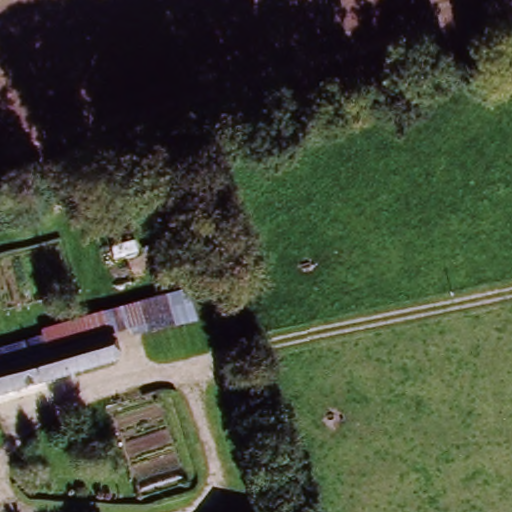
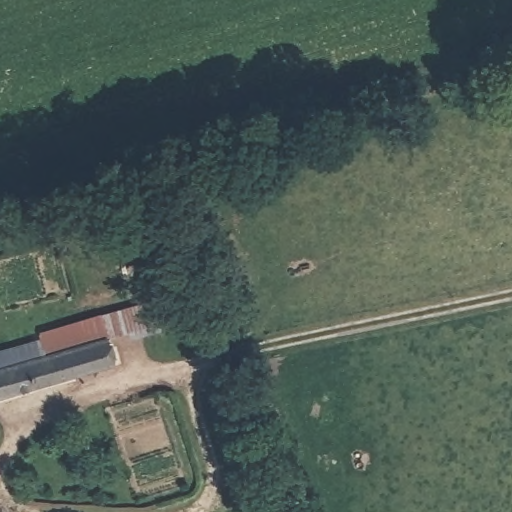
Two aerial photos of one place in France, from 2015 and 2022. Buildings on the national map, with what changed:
unchanged [(0,404),(0,354),(42,343),(40,337),(59,330),(56,317),(124,299),(125,312),(173,299),(180,330),(117,346),(120,368),(0,404)]

